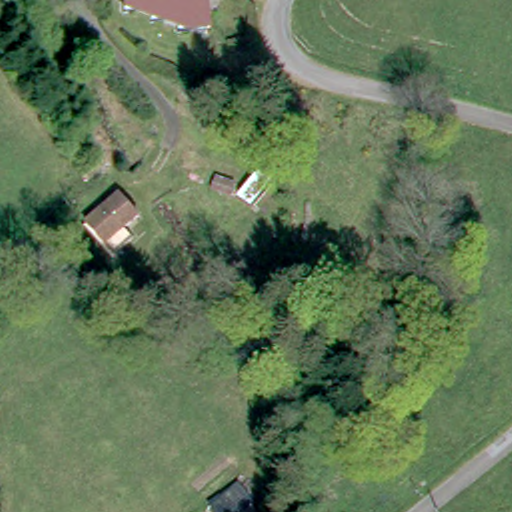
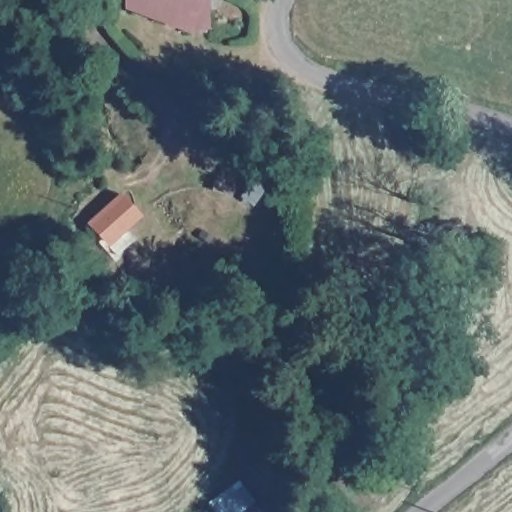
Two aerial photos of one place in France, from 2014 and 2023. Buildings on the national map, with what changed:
unchanged [(206,21),(182,20),(182,12),(153,10),(154,0),(206,0),(206,21)]
unchanged [(135,204),(120,220),(131,229),(117,246),(86,220),(112,185),(135,204)]
unchanged [(230,280),(207,292),(197,275),(220,262),(230,280)]
unchanged [(233,475),(258,512),(213,512),(204,500),(233,475)]

